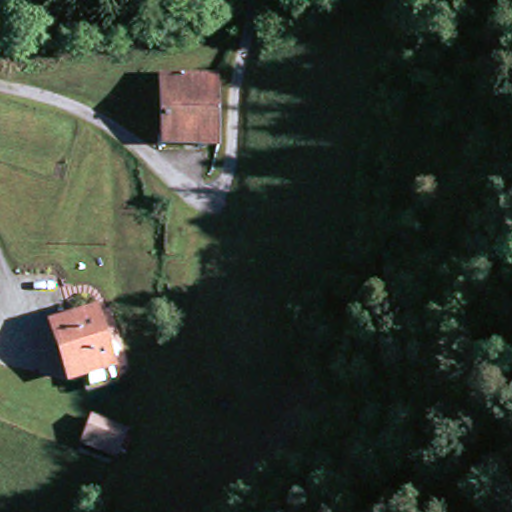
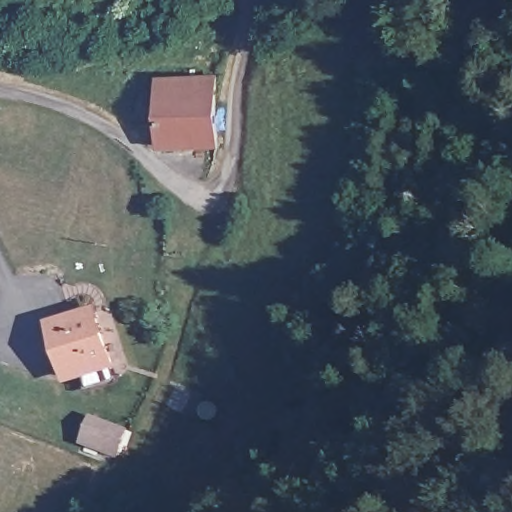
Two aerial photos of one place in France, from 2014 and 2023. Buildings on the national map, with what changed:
unchanged [(154,76),(211,77),(212,145),(154,145),(154,76)]
unchanged [(53,317),(94,306),(113,375),(84,382),(80,367),(66,371),(53,317)]

